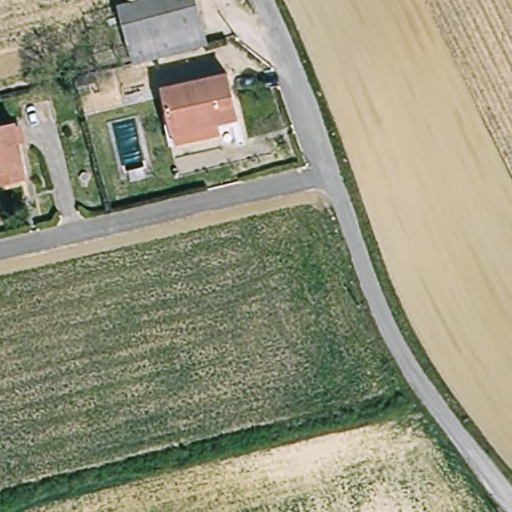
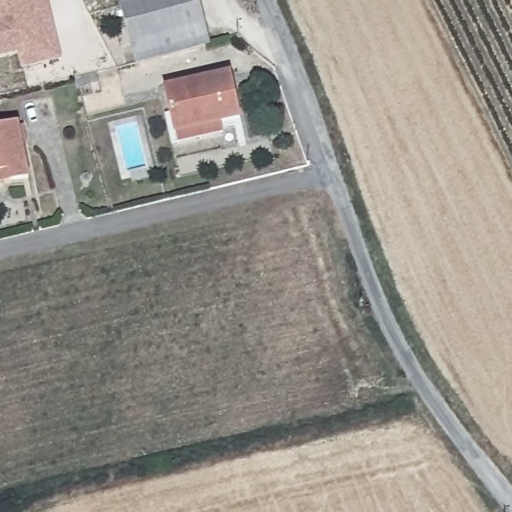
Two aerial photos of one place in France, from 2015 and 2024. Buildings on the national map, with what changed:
new [(23,51),(0,58),(0,0),(48,0),(62,60),(28,68),(23,51)]
unchanged [(206,45),(134,60),(120,6),(150,0),(197,0),(206,45)]
unchanged [(164,91),(227,77),(237,120),(217,124),(219,135),(175,144),(174,134),(164,91)]
unchanged [(21,122),(31,175),(11,179),(0,181),(0,126),(21,122)]

